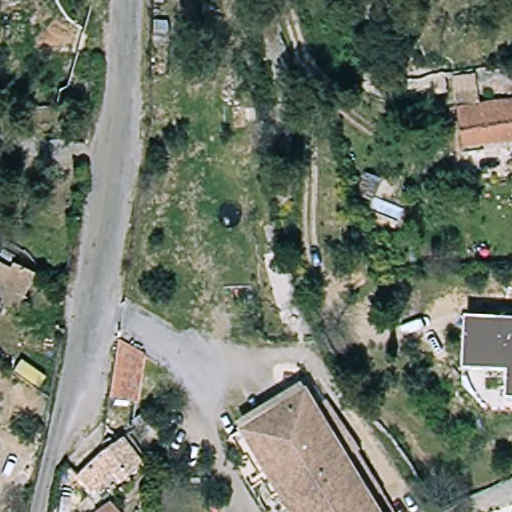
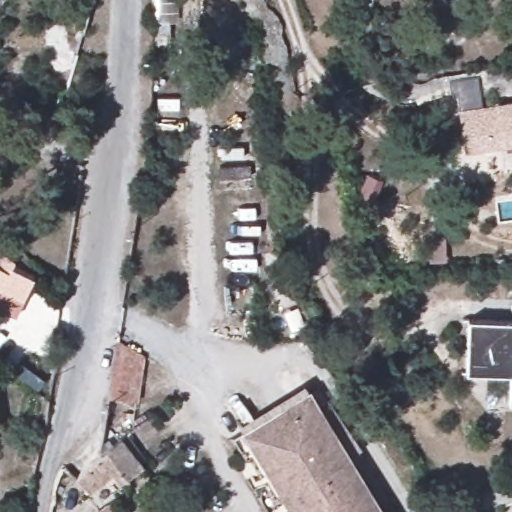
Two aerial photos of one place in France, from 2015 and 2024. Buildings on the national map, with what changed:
unchanged [(451,81),(475,80),(479,110),(512,104),(512,146),(483,150),(463,154),(451,81)]
unchanged [(0,316),(0,261),(12,266),(8,275),(33,286),(22,310),(14,322),(0,316)]
unchanged [(470,363),(471,322),(512,323),(512,365),(507,365),(507,379),(469,378),(470,363)]
unchanged [(115,340),(140,356),(132,405),(104,401),(115,340)]
unchanged [(317,403),(326,397),(359,445),(357,447),(395,512),(287,512),(238,427),(307,386),(317,403)]
unchanged [(118,445),(143,476),(127,489),(116,475),(87,498),(65,470),(82,456),(90,464),(96,462),(118,445)]
unchanged [(109,500),(116,512),(93,512),(93,510),(109,500)]

